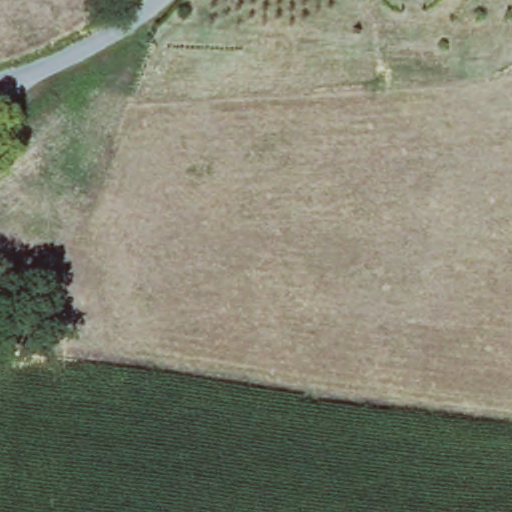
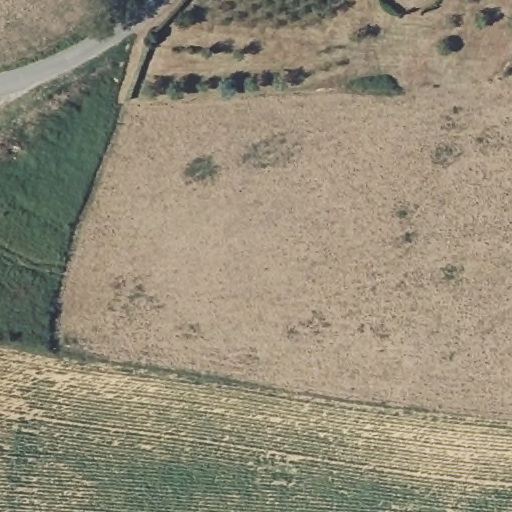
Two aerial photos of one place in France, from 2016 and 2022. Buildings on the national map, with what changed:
[]

